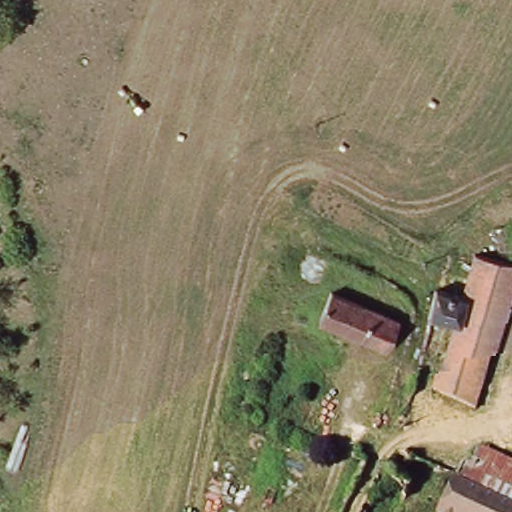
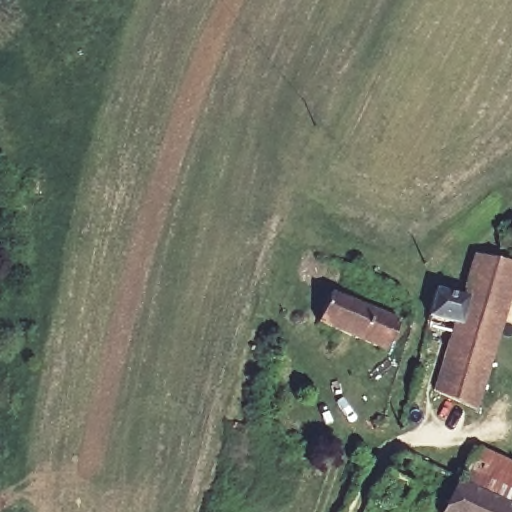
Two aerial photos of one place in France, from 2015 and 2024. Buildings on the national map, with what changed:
unchanged [(499,226),(512,224),(512,249),(500,249),(499,226)]
unchanged [(451,332),(451,325),(429,319),(434,292),(461,296),(463,291),(473,256),(512,265),(512,299),(480,411),(434,395),(451,332)]
unchanged [(387,349),(321,323),(334,291),(399,317),(387,349)]
unchanged [(512,466),(512,508),(461,481),(476,449),(512,466)]
unchanged [(512,508),(512,512),(445,512),(461,481),(512,508)]

